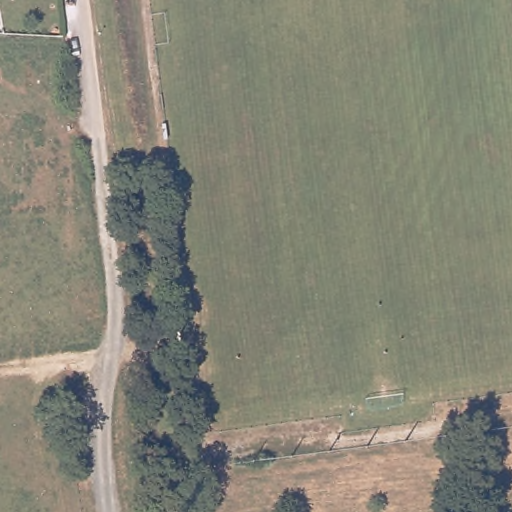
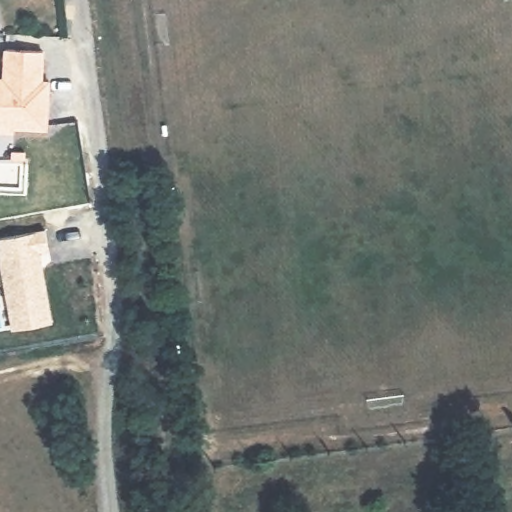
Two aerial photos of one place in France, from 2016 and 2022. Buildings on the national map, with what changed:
new [(4,48),(42,51),(40,81),(47,82),(43,129),(0,126),(0,78),(1,78),(4,48)]
new [(48,249),(38,251),(50,322),(11,328),(0,262),(0,238),(45,230),(48,249)]
unchanged [(194,493),(195,504),(183,506),(182,495),(194,493)]

